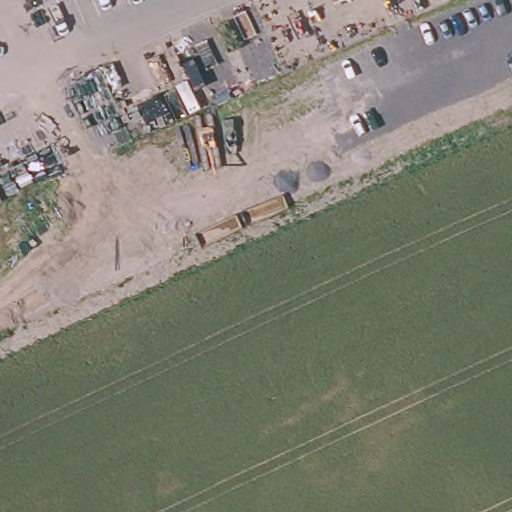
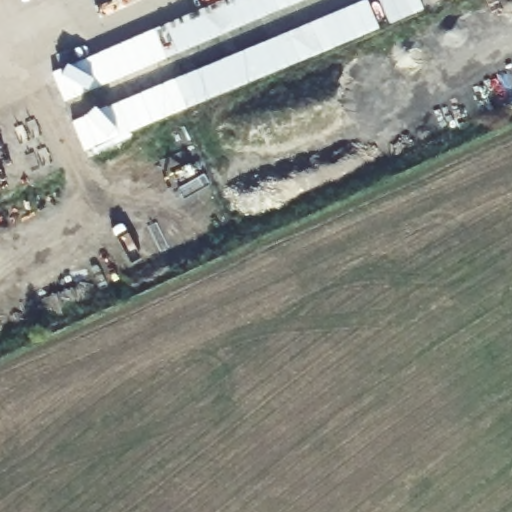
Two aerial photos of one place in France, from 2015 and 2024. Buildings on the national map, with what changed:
new [(65,102),(52,75),(228,0),(307,0),(65,102)]
new [(380,31),(84,153),(71,124),(366,1),(380,31)]

